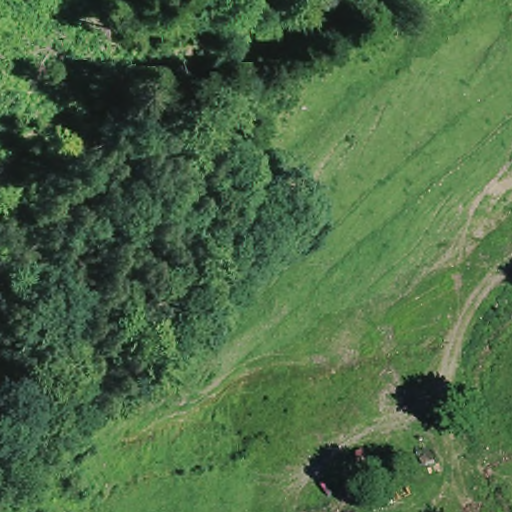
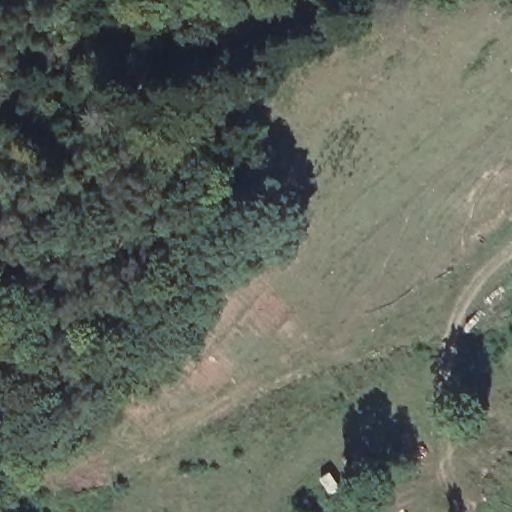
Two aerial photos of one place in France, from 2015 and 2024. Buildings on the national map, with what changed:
[]

